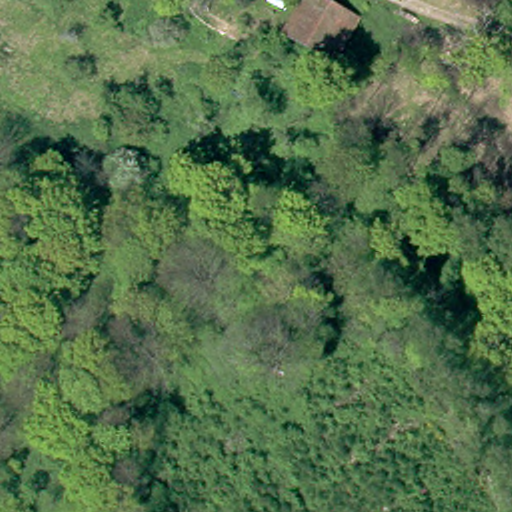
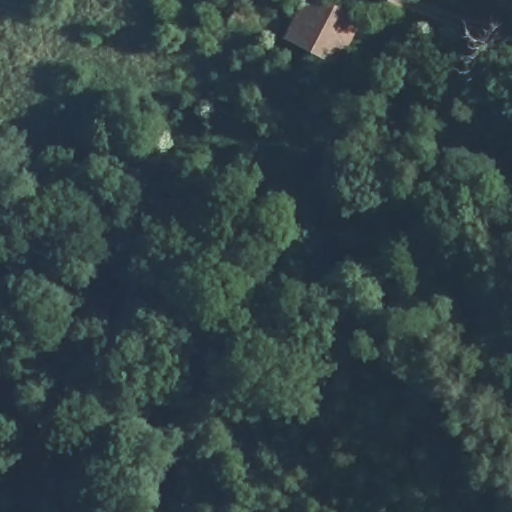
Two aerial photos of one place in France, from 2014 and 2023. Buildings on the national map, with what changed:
unchanged [(332,69),(284,45),(308,1),(354,24),(332,69)]

